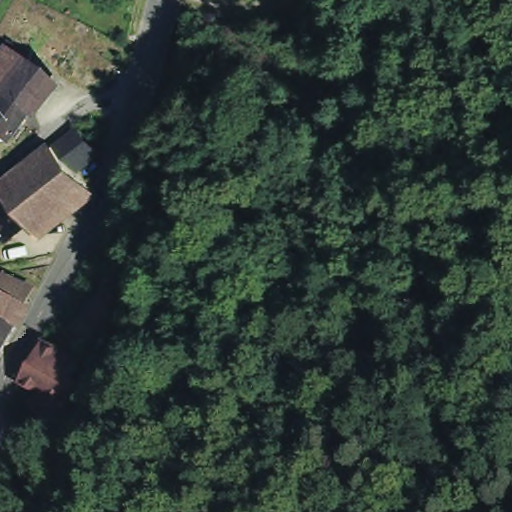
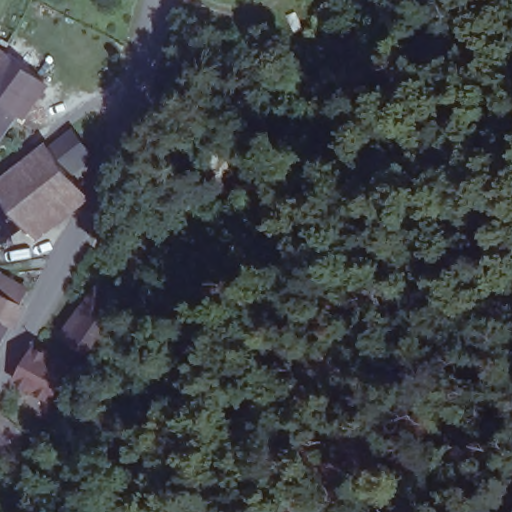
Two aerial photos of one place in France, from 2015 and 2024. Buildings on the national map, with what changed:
unchanged [(56,77),(30,112),(24,107),(1,137),(0,136),(0,43),(56,77)]
unchanged [(0,188),(0,171),(48,137),(93,192),(30,233),(0,188)]
unchanged [(0,234),(0,228),(3,232),(0,234)]
unchanged [(100,340),(85,332),(57,316),(78,285),(91,267),(126,287),(114,304),(121,307),(100,340)]
unchanged [(28,301),(0,353),(0,287),(28,301)]
unchanged [(49,393),(48,395),(13,376),(35,341),(68,362),(65,367),(77,373),(66,392),(54,385),(49,393)]

